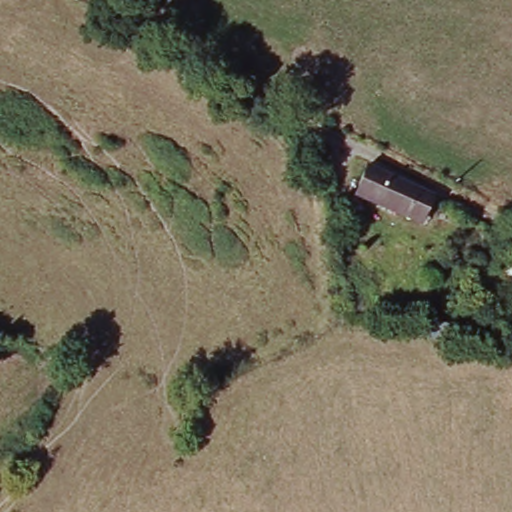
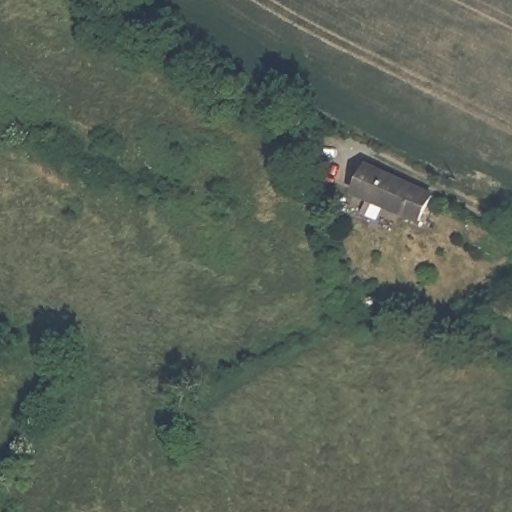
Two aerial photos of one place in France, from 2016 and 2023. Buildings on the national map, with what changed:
unchanged [(362,169),(429,200),(415,227),(351,195),(362,169)]

